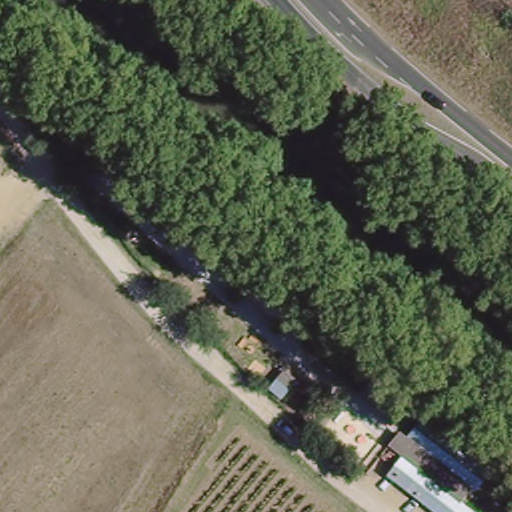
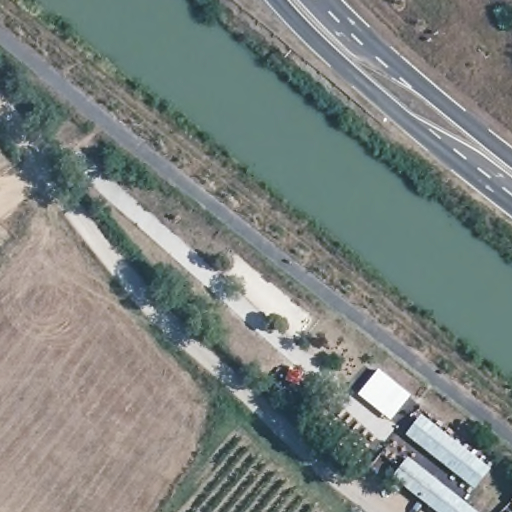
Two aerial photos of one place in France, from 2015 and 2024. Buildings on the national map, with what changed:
new [(360,394),(378,373),(409,398),(390,420),(360,394)]
unchanged [(485,483),(476,493),(471,490),(463,502),(476,512),(432,512),(386,477),(402,457),(388,446),(401,431),(407,436),(415,426),(485,483)]

